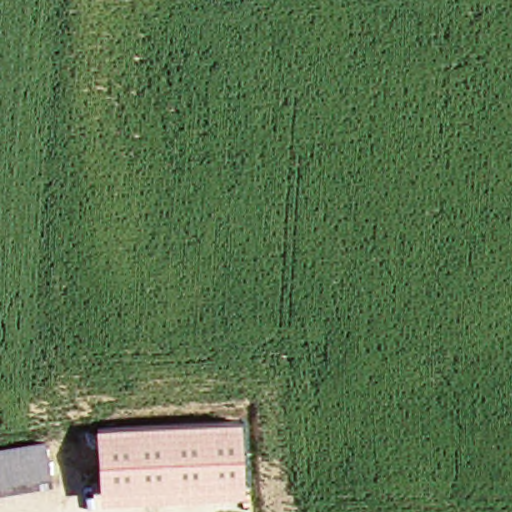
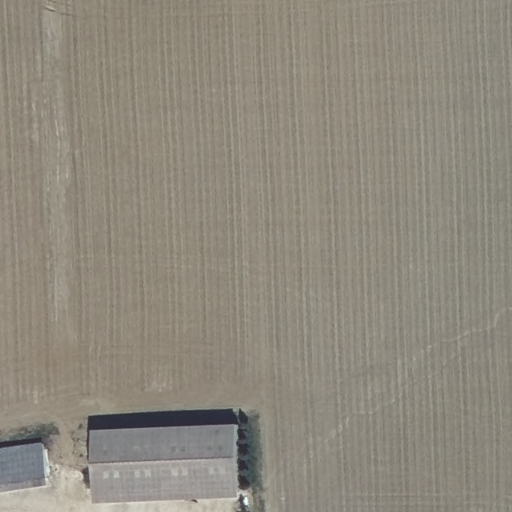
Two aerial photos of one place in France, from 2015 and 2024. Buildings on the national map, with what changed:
unchanged [(240,425),(244,497),(99,501),(95,431),(240,425)]
unchanged [(0,452),(55,447),(57,480),(0,485),(0,452)]

